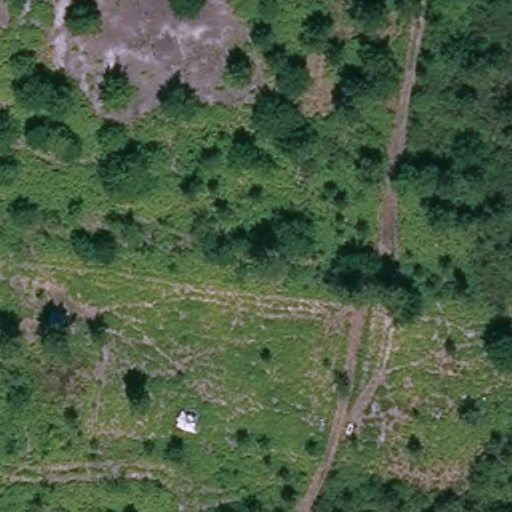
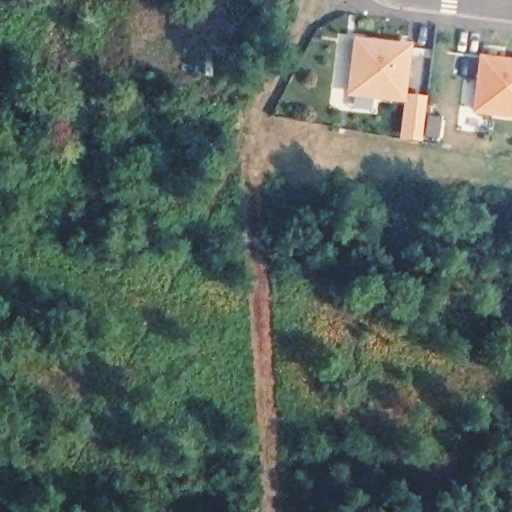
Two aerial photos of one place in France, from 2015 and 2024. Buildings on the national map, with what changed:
new [(346,97),(353,37),(410,45),(402,104),(346,97)]
new [(512,59),(512,119),(471,113),(479,56),(512,59)]

